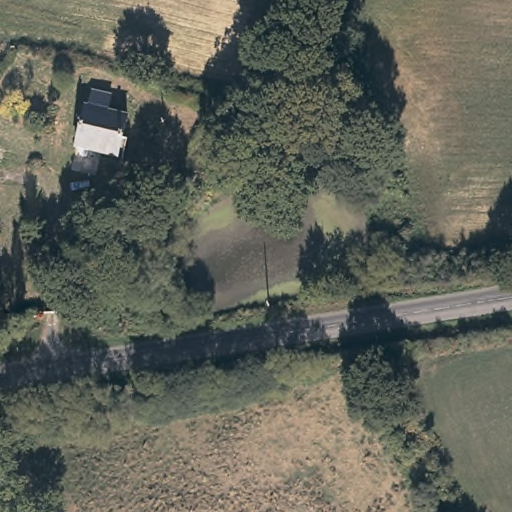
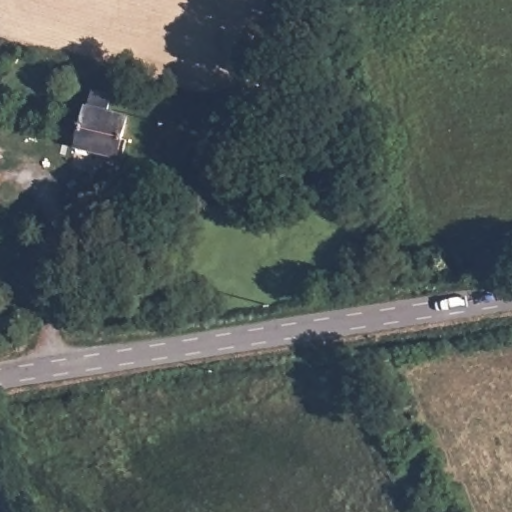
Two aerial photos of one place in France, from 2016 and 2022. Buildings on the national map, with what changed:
unchanged [(109,103),(107,112),(126,116),(117,160),(76,150),(85,107),(91,109),(93,100),(109,103)]

